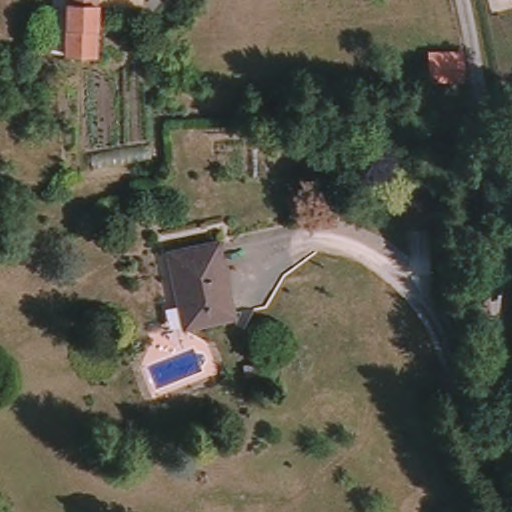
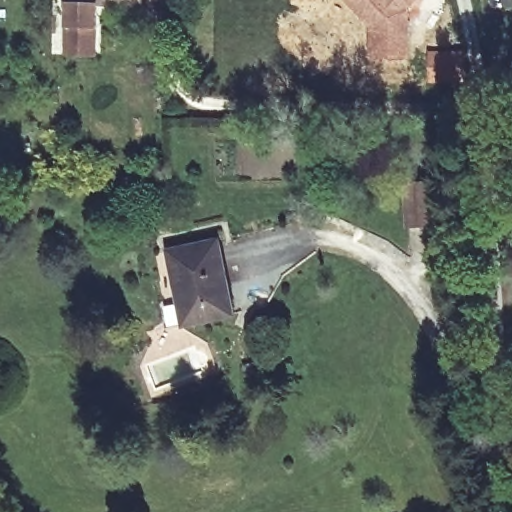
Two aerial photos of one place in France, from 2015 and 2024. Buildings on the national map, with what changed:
unchanged [(65,55),(66,0),(97,0),(97,6),(95,55),(65,55)]
unchanged [(97,6),(97,0),(142,0),(141,6),(97,6)]
new [(419,0),(420,1),(409,14),(409,60),(366,61),(365,26),(340,0),(341,0),(419,0)]
unchanged [(430,55),(460,55),(461,81),(430,81),(430,55)]
unchanged [(405,186),(429,184),(431,225),(406,226),(405,186)]
unchanged [(167,251),(218,241),(233,316),(182,325),(167,251)]

